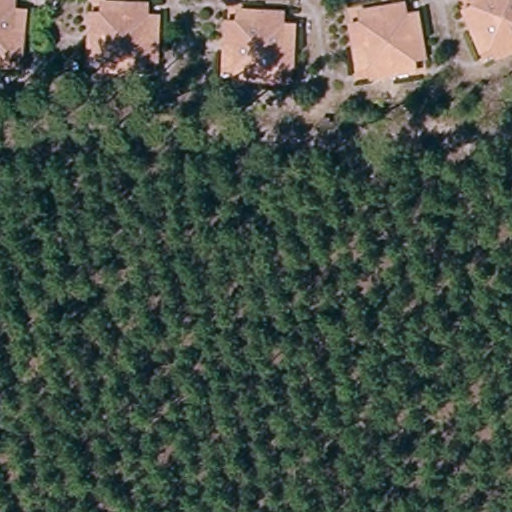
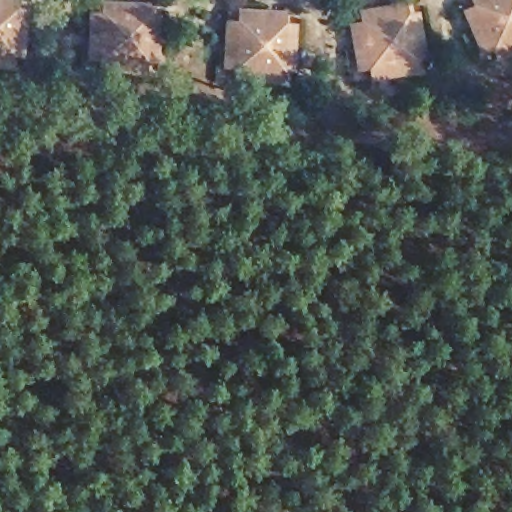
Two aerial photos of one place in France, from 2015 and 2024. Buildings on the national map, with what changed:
unchanged [(469,12),(465,2),(470,0),(512,0),(512,53),(493,62),(488,52),(479,57),(470,39),(460,17),(469,12)]
unchanged [(0,1),(12,2),(11,12),(22,12),(21,34),(20,57),(9,57),(7,68),(0,68),(0,1)]
unchanged [(118,75),(94,74),(94,64),(83,64),(83,42),(84,19),(94,19),(94,7),(115,8),(139,8),(139,19),(150,19),(150,40),(150,64),(139,64),(139,75),(118,75)]
unchanged [(390,76),(366,81),(364,71),(353,72),(350,52),(345,29),(355,27),(352,16),(373,12),(397,7),(399,17),(410,15),(414,36),(418,59),(408,61),(411,72),(390,76)]
unchanged [(233,85),(233,75),(222,75),(222,54),(222,30),(233,30),(233,19),(255,19),(278,19),(278,30),(289,30),(289,51),(288,75),(278,75),(278,86),(257,85),(233,85)]

